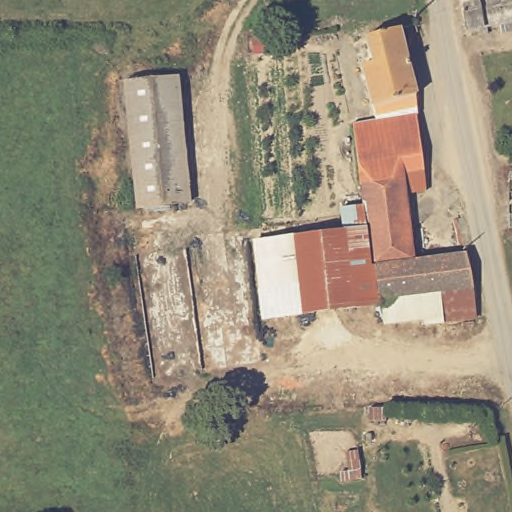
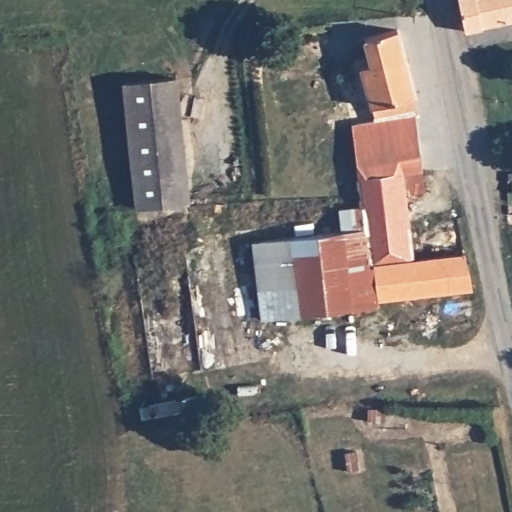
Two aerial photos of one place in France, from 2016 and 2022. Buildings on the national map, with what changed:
unchanged [(502,24),(466,32),(460,0),(512,0),(512,31),(504,32),(502,24)]
unchanged [(347,124),(369,120),(367,107),(357,66),(366,62),(360,37),(393,30),(410,95),(411,112),(422,191),(400,194),(356,197),(347,124)]
unchanged [(125,82),(178,78),(192,202),(138,207),(125,82)]
unchanged [(511,179),(512,179),(512,191),(510,191),(511,179)]
unchanged [(356,197),(400,194),(408,261),(461,253),(467,287),(374,301),(358,205),(356,197)]
unchanged [(375,305),(258,318),(249,242),(339,230),(336,209),(358,205),(374,301),(375,305)]
unchanged [(440,321),(438,317),(379,325),(375,305),(374,301),(467,287),(472,317),(440,321)]
unchanged [(386,407),(386,421),(369,421),(368,407),(386,407)]

